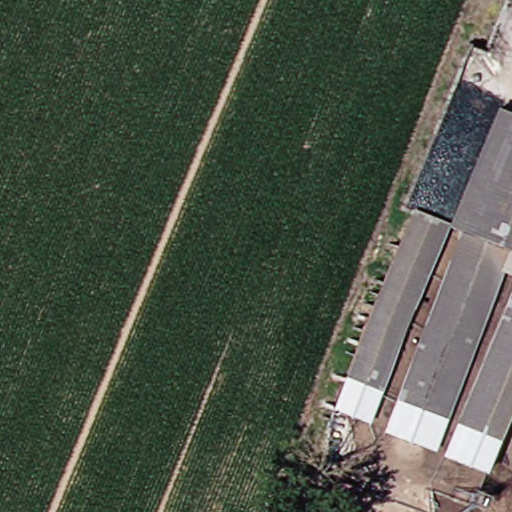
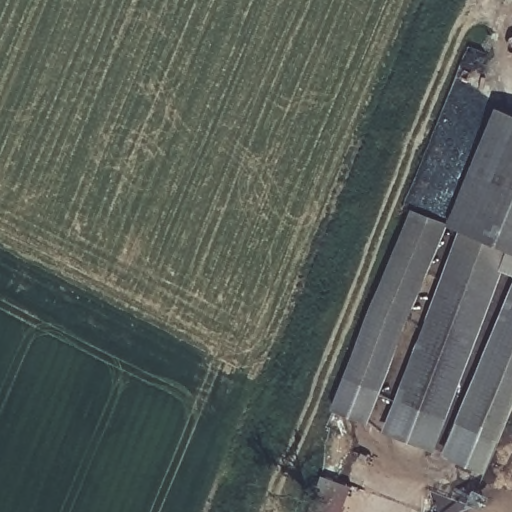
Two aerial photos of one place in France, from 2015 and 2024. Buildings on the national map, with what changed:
unchanged [(489,110),(512,119),(512,254),(508,252),(456,232),(442,227),(489,110)]
unchanged [(369,391),(343,380),(335,377),(404,212),(407,214),(439,226),(369,391)]
unchanged [(436,422),(385,403),(456,232),(508,252),(436,422)]
unchanged [(455,430),(512,293),(512,398),(493,444),(455,430)]

